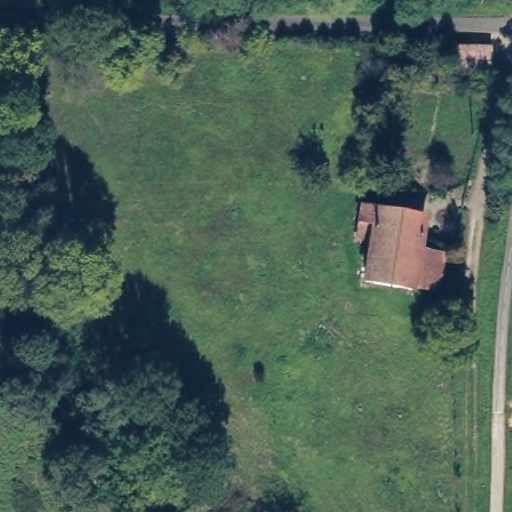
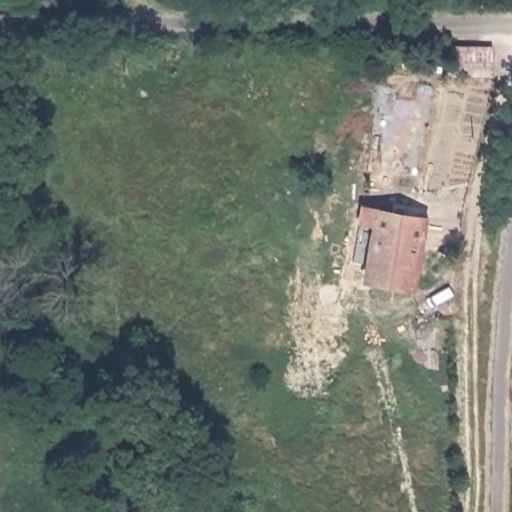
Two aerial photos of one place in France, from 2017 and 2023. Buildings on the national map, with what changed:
unchanged [(491,45),(490,73),(449,71),(450,44),(491,45)]
unchanged [(379,76),(395,78),(393,96),(377,95),(379,76)]
unchanged [(432,216),(427,246),(450,250),(445,286),(420,283),(420,287),(358,278),(370,206),(432,216)]

